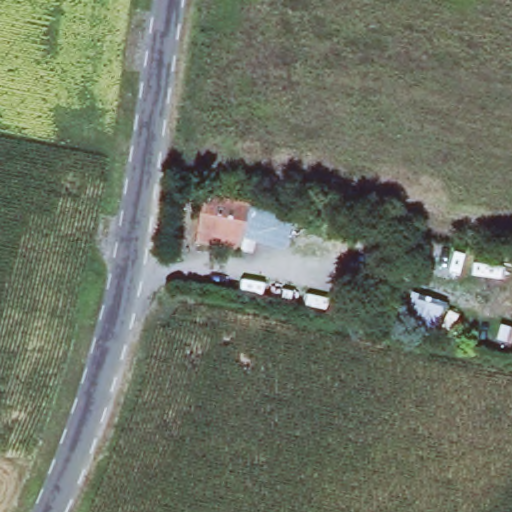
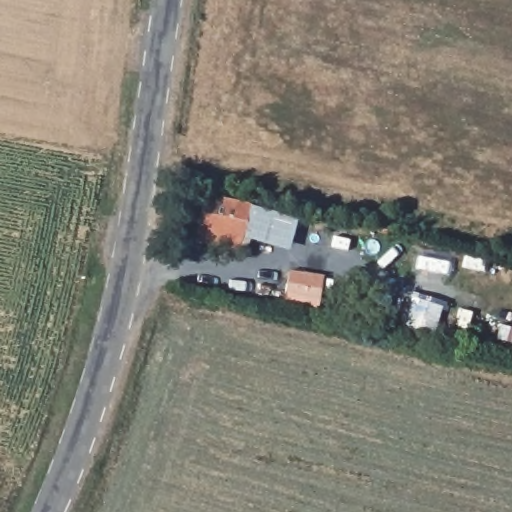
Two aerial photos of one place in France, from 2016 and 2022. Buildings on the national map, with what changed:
unchanged [(206,194),(253,201),(253,207),(289,214),(284,235),(249,230),(243,250),(198,242),(206,194)]
unchanged [(412,295),(449,309),(437,340),(400,329),(412,295)]

